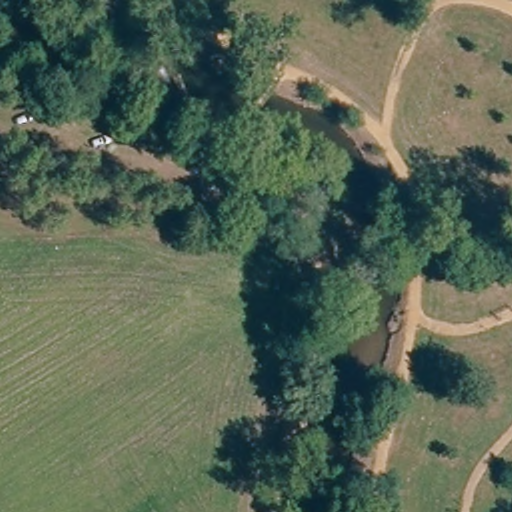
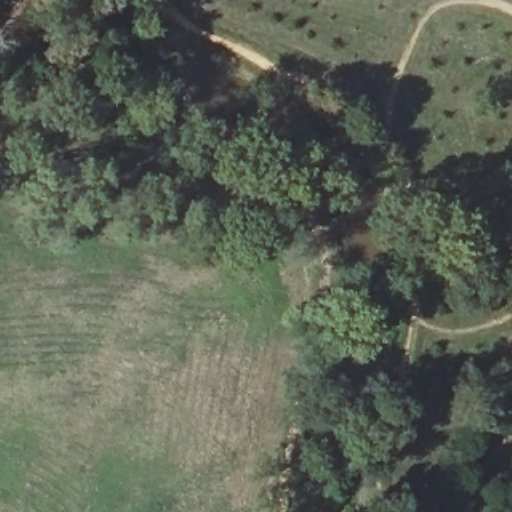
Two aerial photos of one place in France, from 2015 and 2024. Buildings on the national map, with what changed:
[]

